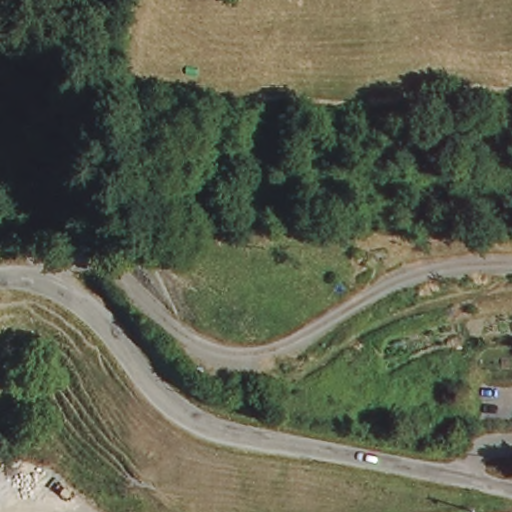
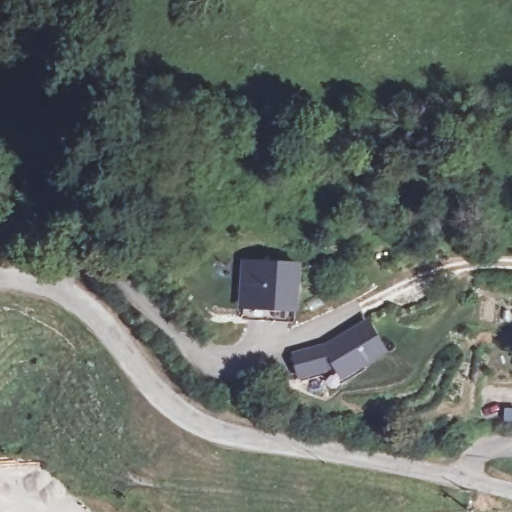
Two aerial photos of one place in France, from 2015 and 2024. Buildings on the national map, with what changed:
new [(232,313),(235,269),(287,272),(285,315),(280,315),(280,327),(238,326),(239,313),(232,313)]
new [(341,381),(325,371),(305,377),(304,372),(298,353),(330,344),(368,320),(385,347),(363,361),(366,365),(341,381)]

